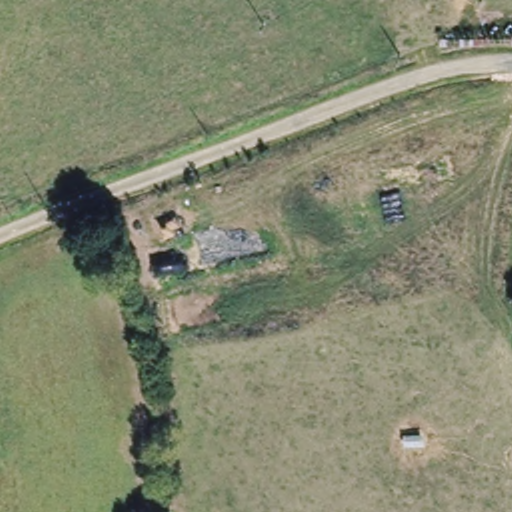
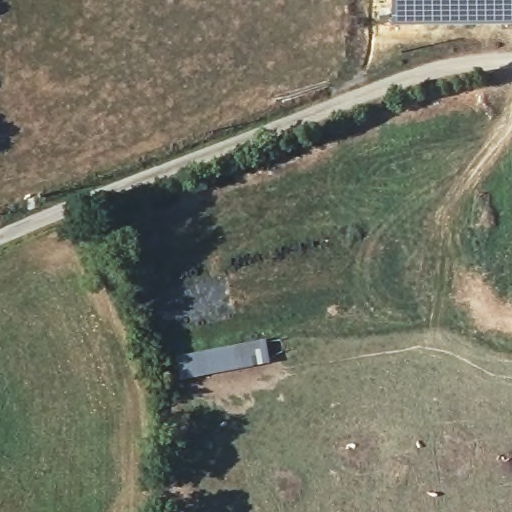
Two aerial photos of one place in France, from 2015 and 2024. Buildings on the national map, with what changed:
new [(512,26),(402,26),(391,25),(391,0),(512,0),(512,26)]
new [(206,353),(207,349),(229,352),(230,340),(267,343),(271,364),(187,381),(184,355),(206,353)]

